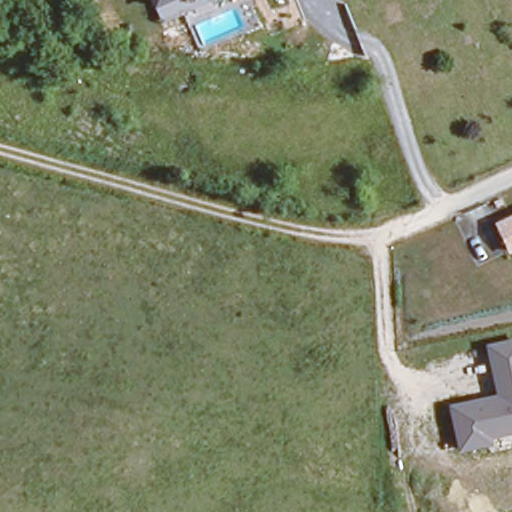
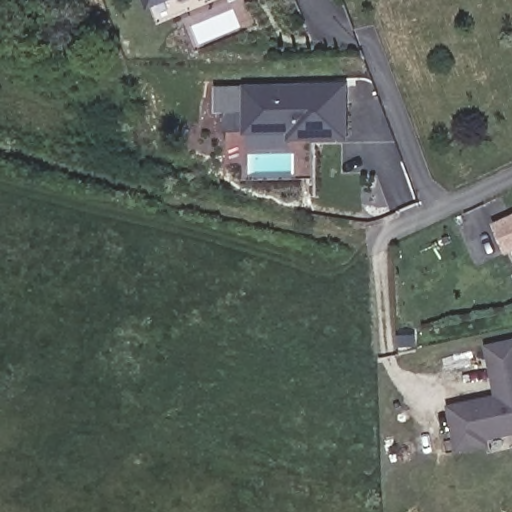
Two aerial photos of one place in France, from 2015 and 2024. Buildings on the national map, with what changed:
unchanged [(150,0),(217,0),(161,23),(150,0)]
new [(290,141),(289,133),(245,135),(243,85),(348,82),(350,139),(290,141)]
unchanged [(512,216),(512,252),(510,253),(496,224),(512,216)]
unchanged [(495,394),(485,344),(512,339),(512,434),(490,438),(492,445),(457,452),(447,404),(495,394)]

